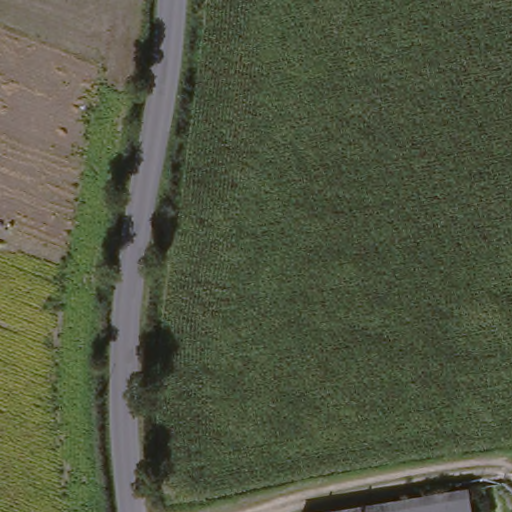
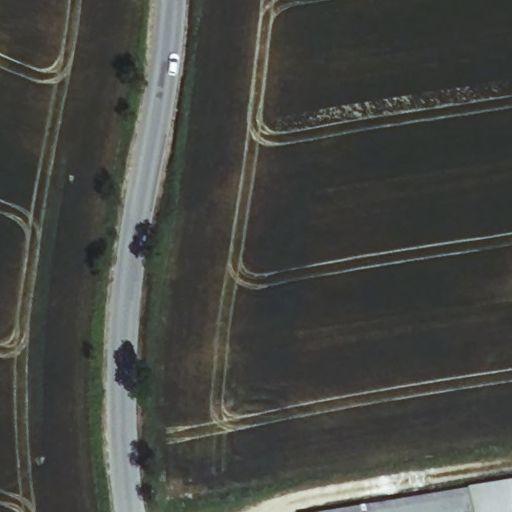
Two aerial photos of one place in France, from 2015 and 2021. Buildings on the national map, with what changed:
new [(512,512),(470,512),(466,487),(512,481),(512,512)]
unchanged [(470,512),(314,512),(466,487),(470,512)]

